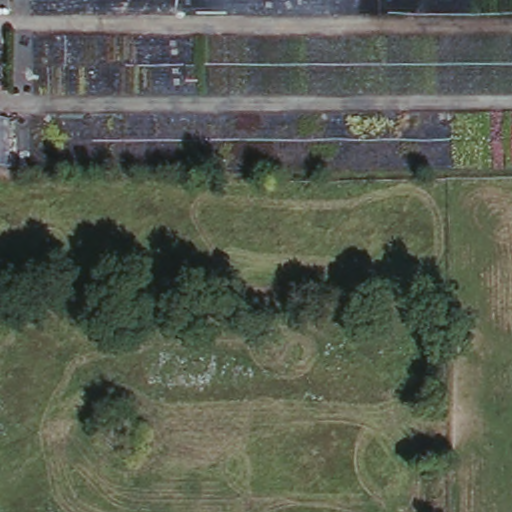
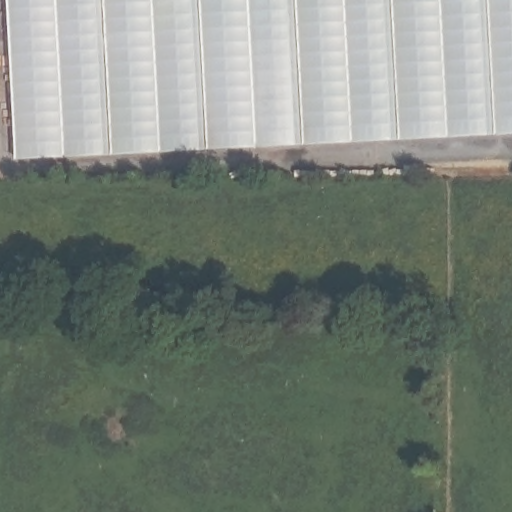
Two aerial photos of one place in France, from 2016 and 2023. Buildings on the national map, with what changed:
new [(16,162),(8,0),(512,0),(512,135),(16,162)]

